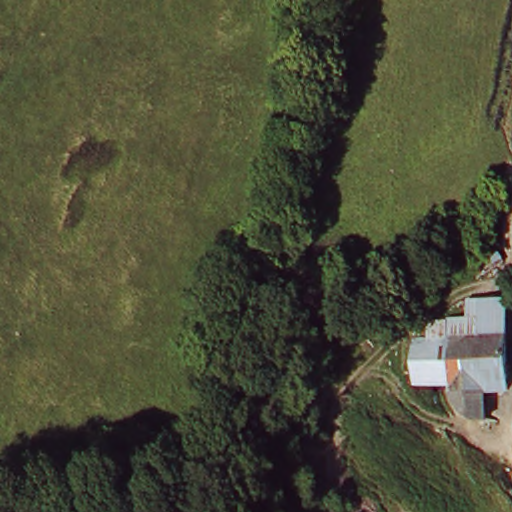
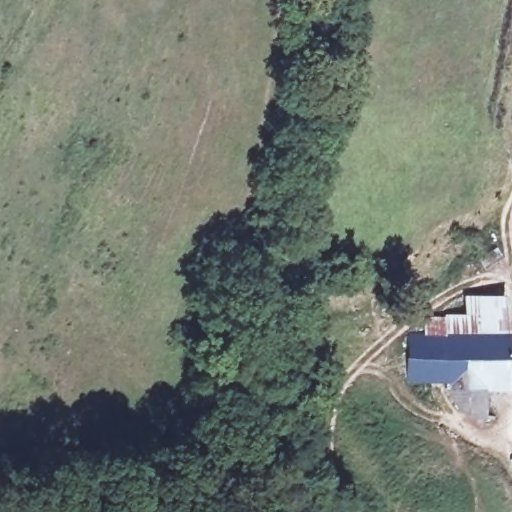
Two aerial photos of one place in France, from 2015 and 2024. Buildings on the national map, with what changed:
unchanged [(475,312),(482,309),(511,312),(512,351),(512,402),(492,402),(492,424),(472,421),(456,406),(454,394),(416,389),(415,345),(445,347),(445,327),(466,328),(467,316),(472,313),(475,312)]

